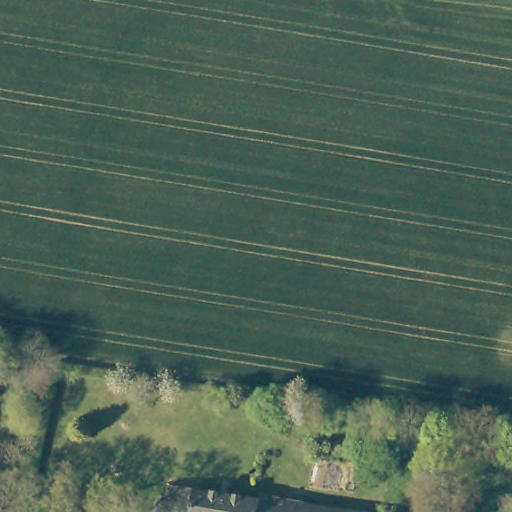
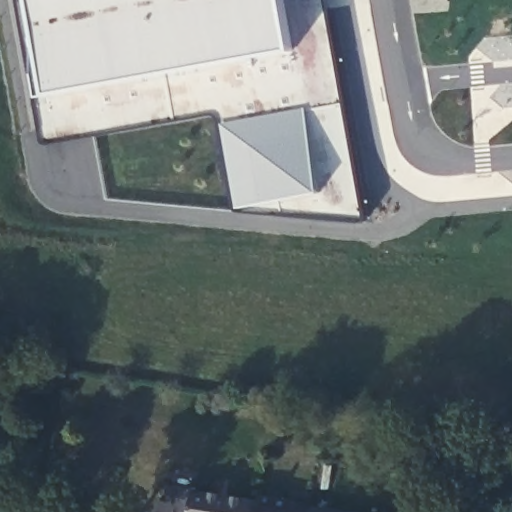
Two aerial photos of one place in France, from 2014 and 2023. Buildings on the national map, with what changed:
new [(11,0),(293,0),(310,82),(38,142),(11,0)]
new [(450,0),(449,6),(439,4),(439,0),(450,0)]
unchanged [(185,490),(252,502),(254,498),(330,512),(154,512),(156,500),(162,501),(165,487),(185,490)]

